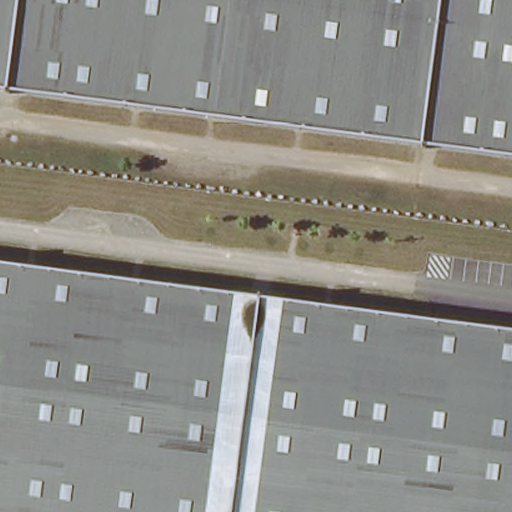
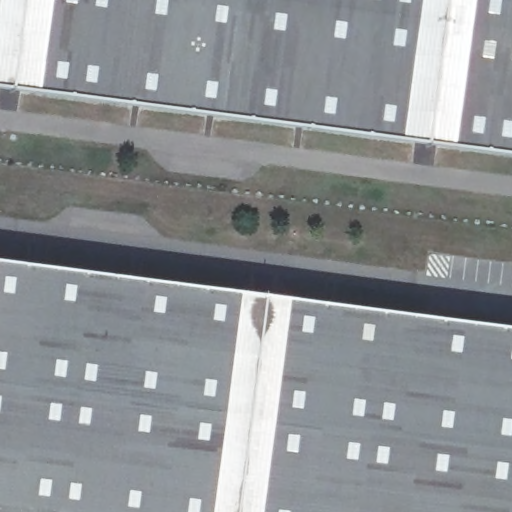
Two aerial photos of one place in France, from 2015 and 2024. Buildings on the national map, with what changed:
unchanged [(0,88),(0,0),(512,0),(512,155),(0,88)]
unchanged [(0,512),(0,267),(512,335),(512,512),(0,512)]

